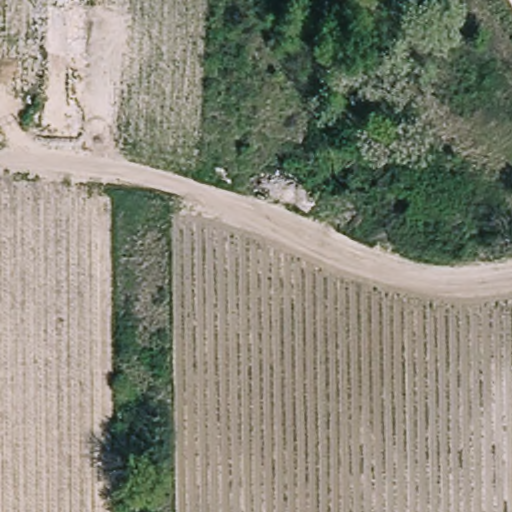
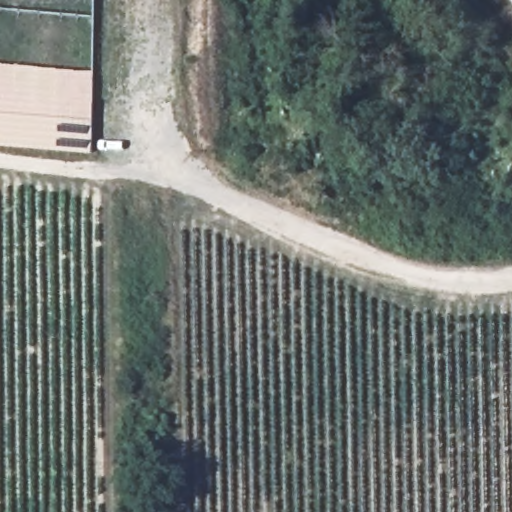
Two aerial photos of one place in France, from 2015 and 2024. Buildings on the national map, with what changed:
new [(94,69),(89,151),(0,146),(0,63),(94,69)]

